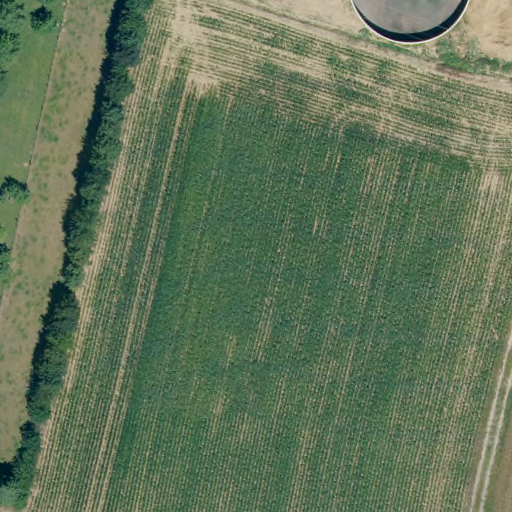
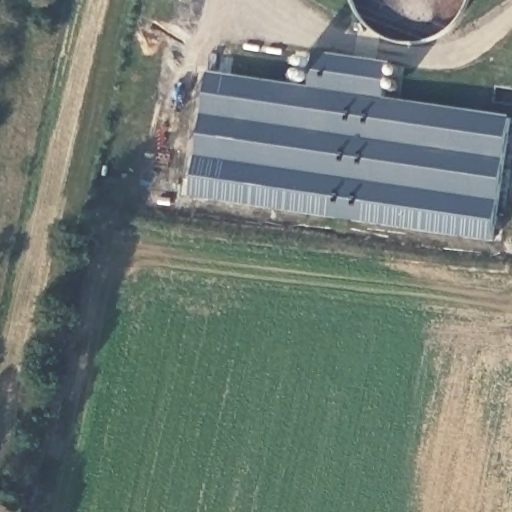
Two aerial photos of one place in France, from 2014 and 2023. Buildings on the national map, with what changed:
new [(386,99),(511,116),(499,201),(194,156),(207,71),(309,86),(315,52),(391,62),(386,99)]

